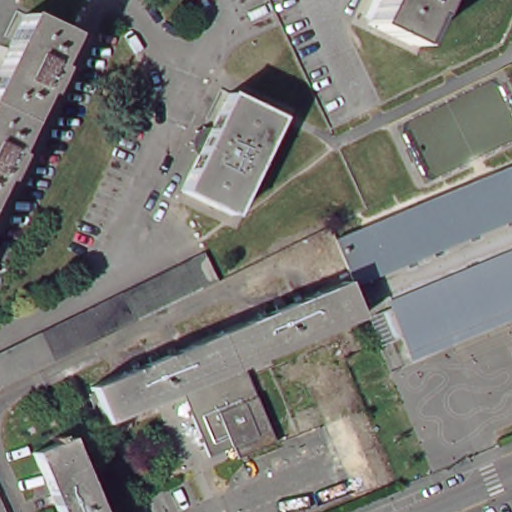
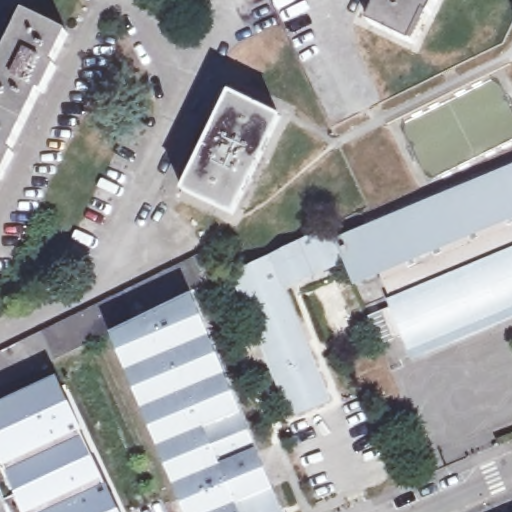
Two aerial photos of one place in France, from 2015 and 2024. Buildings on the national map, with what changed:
unchanged [(390,1),(388,0),(448,0),(439,20),(434,19),(419,49),(377,30),(390,1)]
unchanged [(72,36),(57,66),(62,69),(50,95),(44,93),(15,154),(19,155),(7,182),(3,180),(0,186),(0,80),(31,16),(72,36)]
unchanged [(187,195),(235,98),(286,122),(239,220),(187,195)]
unchanged [(416,354),(411,343),(394,349),(382,320),(398,313),(384,277),(356,289),(338,244),(512,171),(512,314),(416,354)]
new [(240,276),(237,272),(267,257),(299,242),(329,228),(338,244),(346,264),(314,276),(282,289),(331,402),(291,417),(233,279),(240,276)]
unchanged [(240,276),(173,308),(173,309),(27,379),(0,392),(0,358),(227,251),(240,276)]
demolished [(364,319),(113,421),(99,387),(350,285),(364,319)]
new [(210,338),(225,376),(242,416),(258,450),(274,492),(282,512),(184,512),(174,486),(157,447),(141,409),(126,372),(111,339),(173,309),(173,308),(191,299),(210,338)]
new [(88,442),(122,512),(23,512),(0,463),(0,401),(57,374),(88,442)]
demolished [(243,380),(269,444),(220,464),(194,400),(243,380)]
demolished [(42,456),(75,442),(104,512),(65,512),(42,456)]
unchanged [(0,490),(10,512),(0,512),(0,490)]

